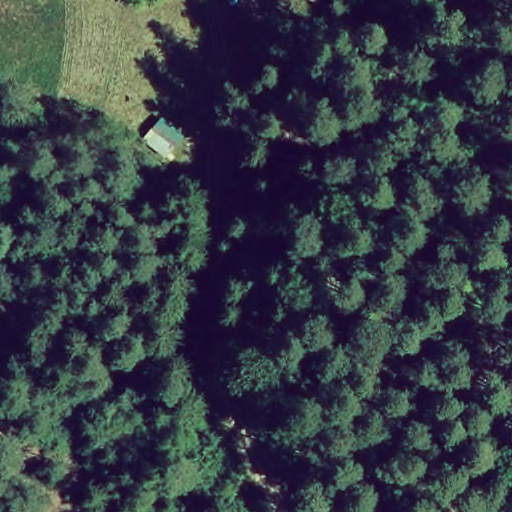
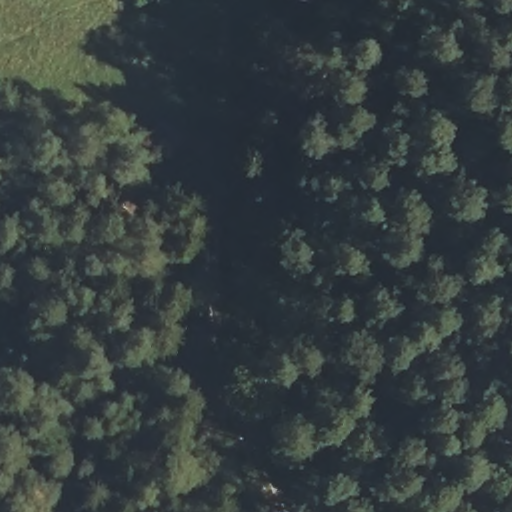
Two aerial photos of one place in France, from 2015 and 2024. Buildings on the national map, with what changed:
unchanged [(162,115),(190,140),(167,163),(140,139),(162,115)]

